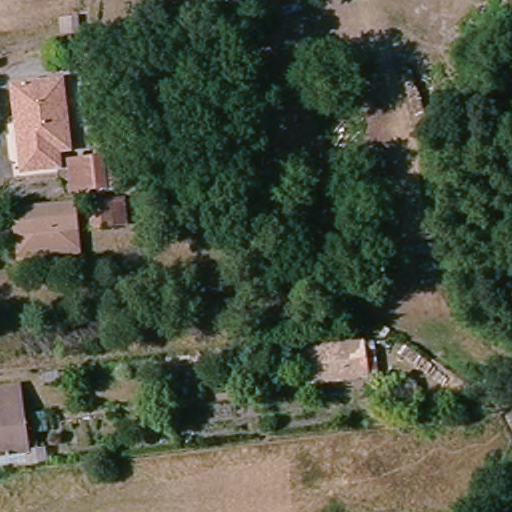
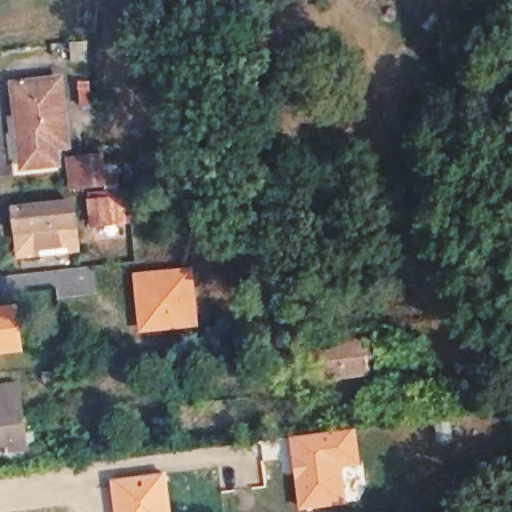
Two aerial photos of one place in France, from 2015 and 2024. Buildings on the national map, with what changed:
unchanged [(65,149),(56,150),(58,163),(23,168),(13,94),(56,89),(65,149)]
unchanged [(93,158),(108,156),(111,189),(83,192),(80,168),(94,166),(93,158)]
unchanged [(116,222),(86,225),(84,205),(114,202),(116,222)]
unchanged [(63,245),(9,252),(5,215),(58,208),(63,245)]
new [(193,266),(199,327),(137,333),(132,272),(193,266)]
new [(18,303),(23,352),(0,355),(0,305),(18,303)]
unchanged [(363,377),(310,384),(307,353),(358,346),(363,377)]
unchanged [(22,455),(0,458),(0,398),(13,396),(22,455)]
new [(355,426),(361,466),(343,468),(347,504),(297,510),(288,436),(355,426)]
new [(166,472),(171,512),(114,512),(110,479),(166,472)]

